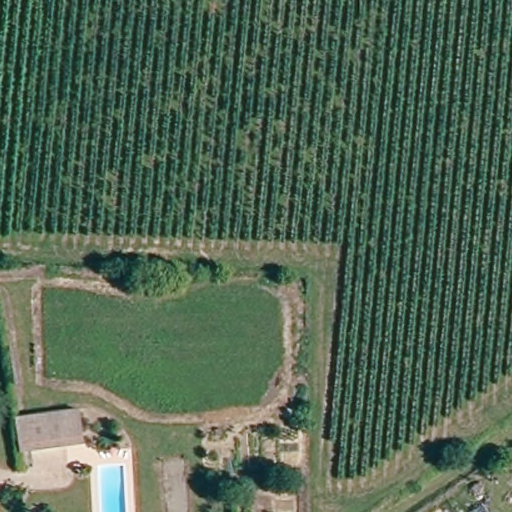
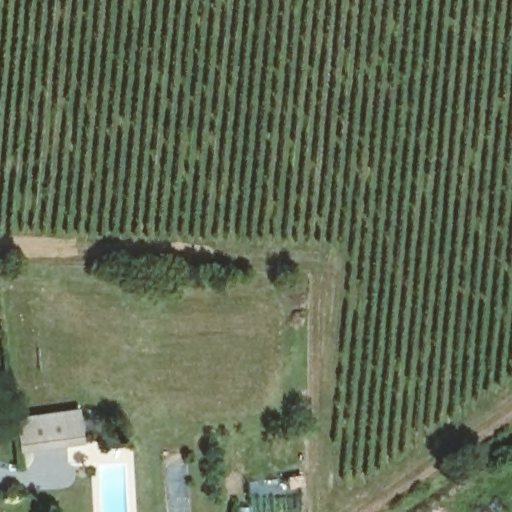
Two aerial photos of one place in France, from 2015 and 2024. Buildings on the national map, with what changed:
unchanged [(85,410),(89,444),(29,452),(26,438),(24,418),(85,410)]

